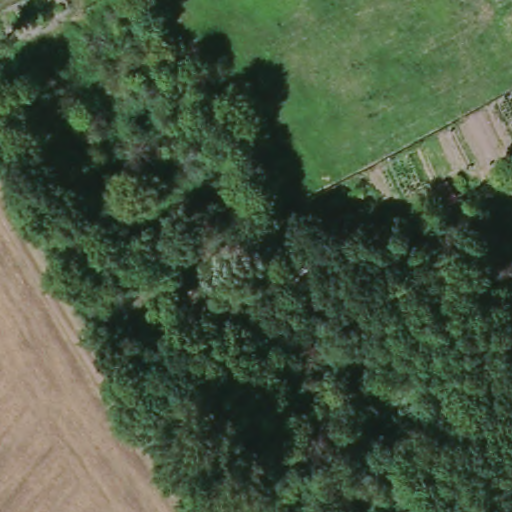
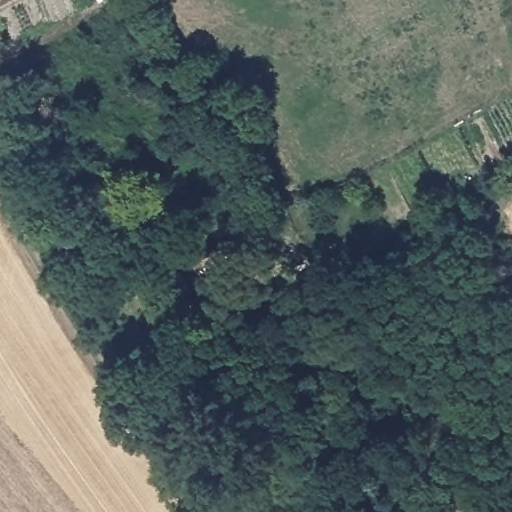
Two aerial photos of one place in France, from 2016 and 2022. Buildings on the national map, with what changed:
unchanged [(442,214),(431,195),(450,182),(461,202),(442,214)]

